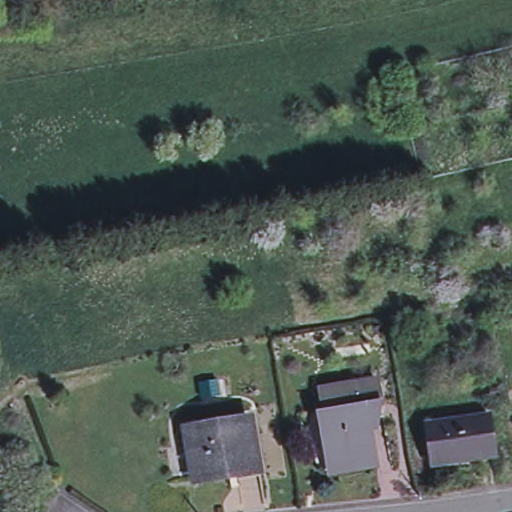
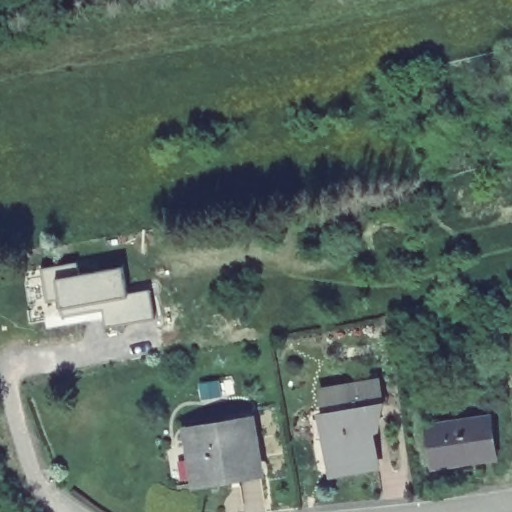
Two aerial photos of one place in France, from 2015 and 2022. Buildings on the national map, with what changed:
new [(154,318),(105,327),(103,310),(62,317),(59,300),(47,302),(42,267),(76,261),(78,275),(123,267),(127,292),(150,289),(154,318)]
unchanged [(330,473),(328,465),(323,437),(329,436),(321,391),(378,381),(382,405),(367,409),(375,456),(377,466),(330,473)]
unchanged [(490,416),(497,457),(432,466),(426,426),(490,416)]
unchanged [(250,421),(259,471),(195,482),(186,432),(250,421)]

